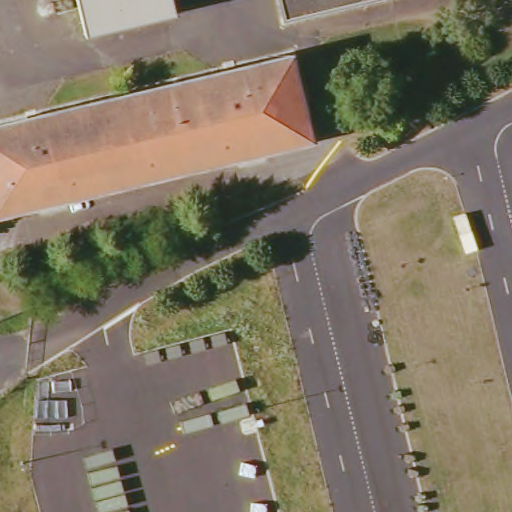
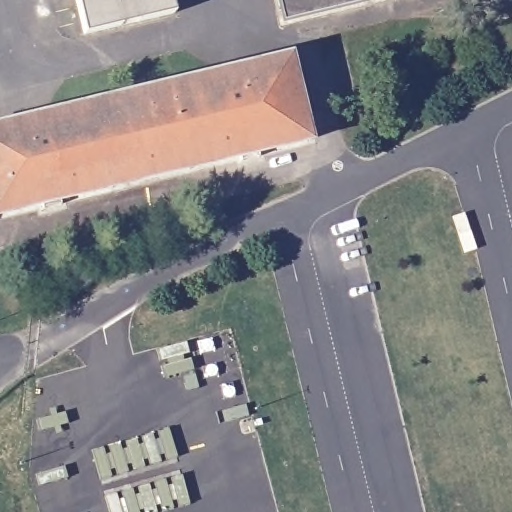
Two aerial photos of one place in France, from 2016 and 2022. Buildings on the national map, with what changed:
unchanged [(111,36),(102,0),(182,0),(186,18),(111,36)]
unchanged [(291,0),(369,0),(295,17),(291,0)]
unchanged [(298,52),(318,137),(0,213),(0,123),(298,52)]
unchanged [(461,212),(466,231),(455,233),(451,215),(461,212)]

